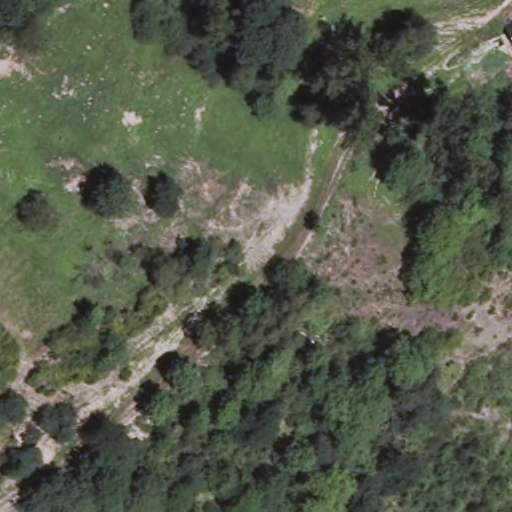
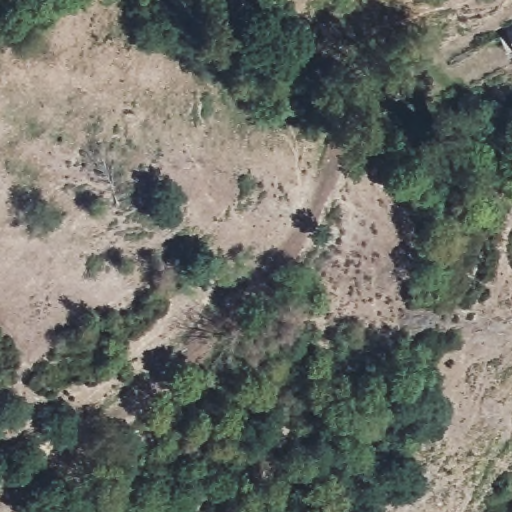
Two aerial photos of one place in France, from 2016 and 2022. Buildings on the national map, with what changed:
unchanged [(507,29),(512,26),(512,39),(507,29)]

